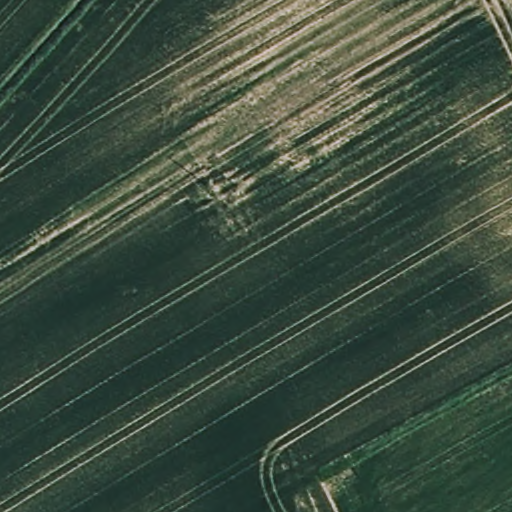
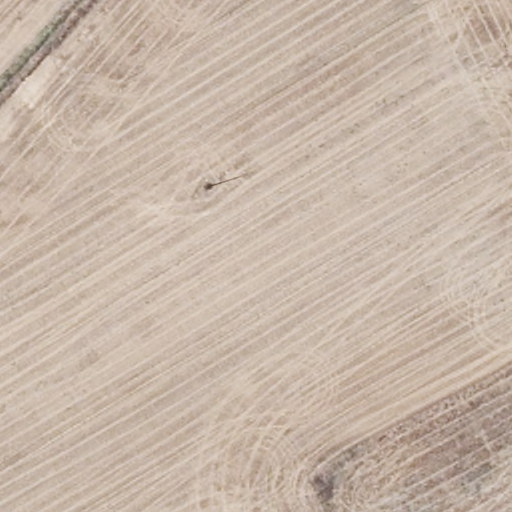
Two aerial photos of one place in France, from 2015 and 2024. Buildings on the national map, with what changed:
[]

